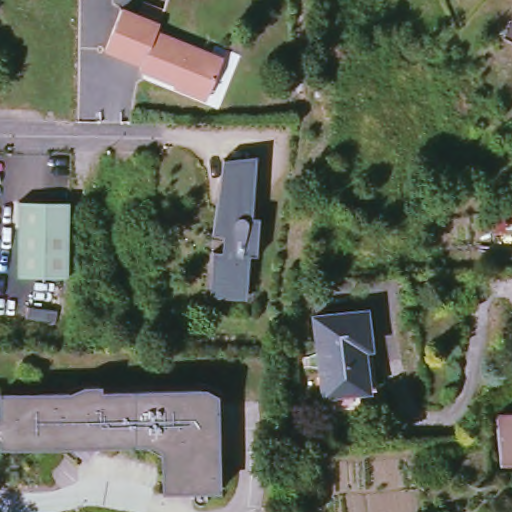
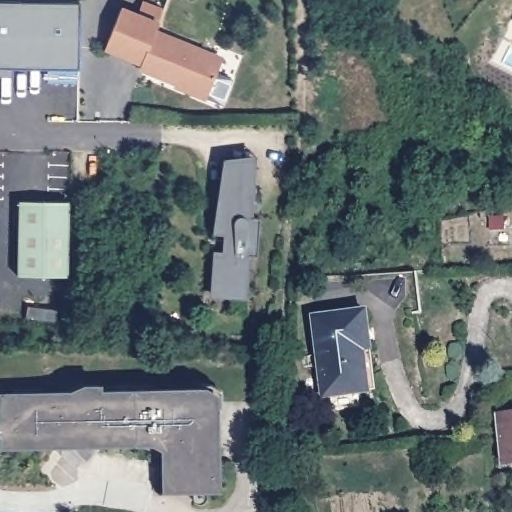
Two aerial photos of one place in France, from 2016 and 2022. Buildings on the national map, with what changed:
new [(88,3),(86,70),(18,71),(18,78),(0,78),(0,1),(88,3)]
unchanged [(217,75),(207,100),(174,87),(177,80),(169,77),(167,81),(139,70),(140,65),(104,50),(120,10),(157,26),(154,33),(212,57),(223,61),(217,75)]
unchanged [(262,220),(259,259),(252,258),(248,297),(211,294),(215,253),(224,254),(225,237),(214,236),(227,164),(228,161),(260,159),(259,167),(255,220),(262,220)]
unchanged [(70,205),(71,279),(21,281),(21,203),(70,205)]
unchanged [(371,351),(364,353),(370,393),(327,399),(316,323),(366,314),(371,351)]
unchanged [(72,391),(80,385),(101,385),(101,391),(207,387),(217,394),(221,492),(161,493),(159,449),(149,443),(2,448),(0,440),(0,395),(72,391)]
unchanged [(502,412),(512,412),(512,460),(502,460),(502,412)]

